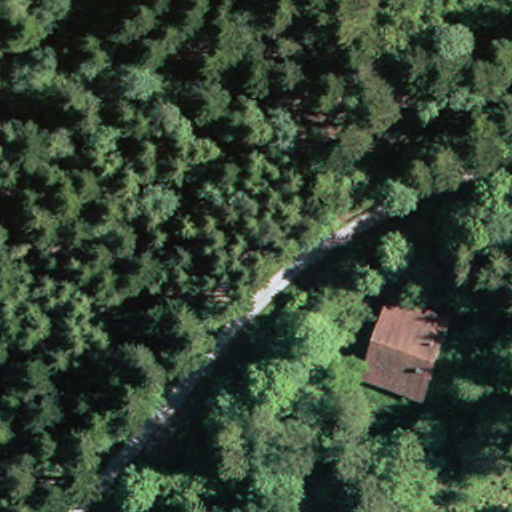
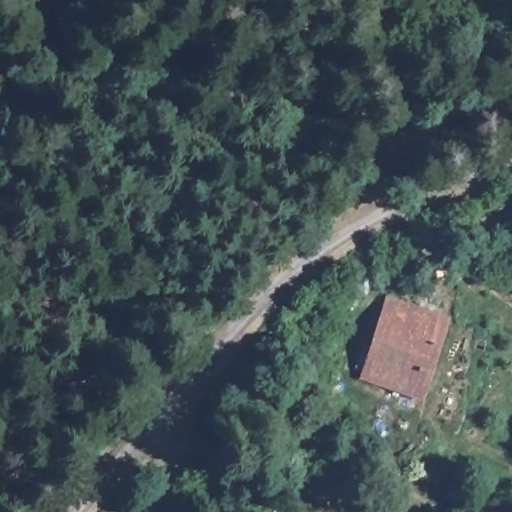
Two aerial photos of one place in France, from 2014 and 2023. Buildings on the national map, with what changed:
unchanged [(389,297),(447,322),(427,373),(369,348),(389,297)]
unchanged [(414,407),(355,381),(369,348),(427,373),(414,407)]

